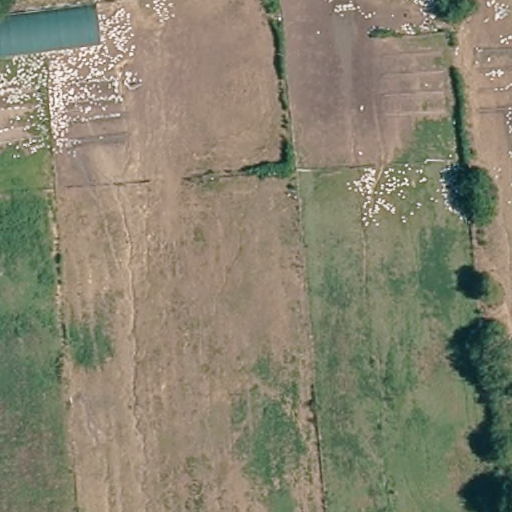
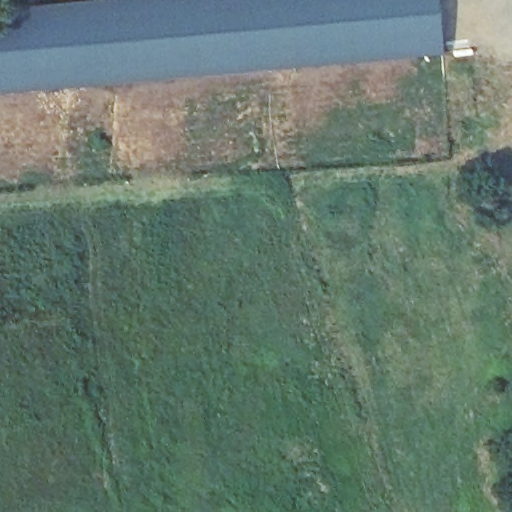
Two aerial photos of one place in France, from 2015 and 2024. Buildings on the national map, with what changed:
demolished [(94,0),(97,39),(0,53),(0,13),(94,0)]
new [(115,0),(434,0),(440,56),(0,94),(0,10),(115,0)]

